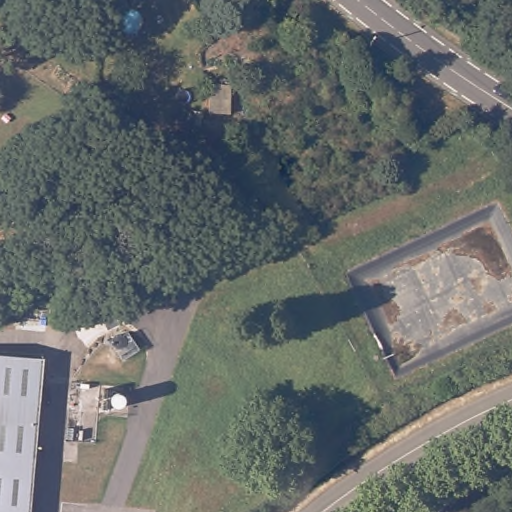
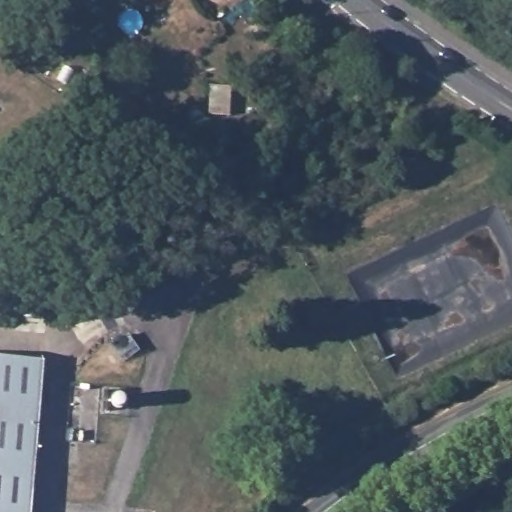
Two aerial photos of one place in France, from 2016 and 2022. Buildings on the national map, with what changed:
unchanged [(0,355),(32,357),(23,512),(0,512),(0,355)]

